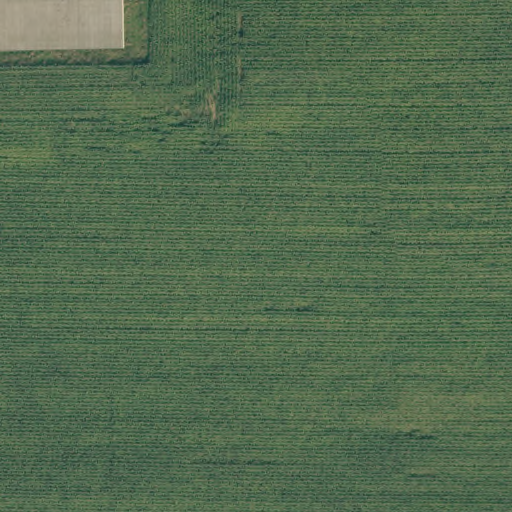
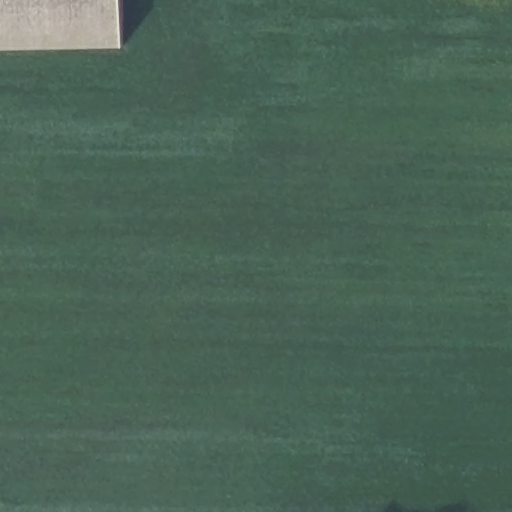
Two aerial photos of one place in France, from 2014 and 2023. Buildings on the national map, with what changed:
unchanged [(122,45),(0,47),(0,0),(121,0),(122,45)]

